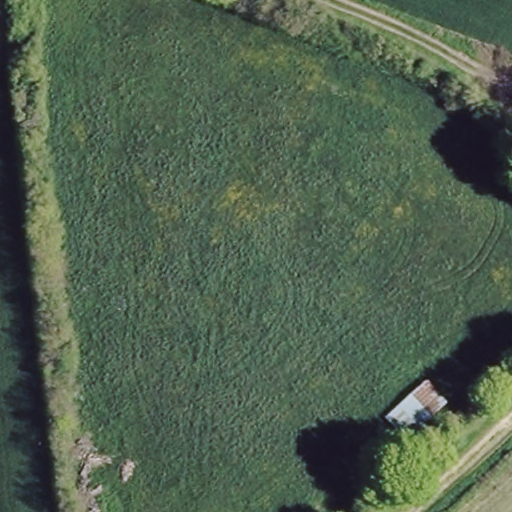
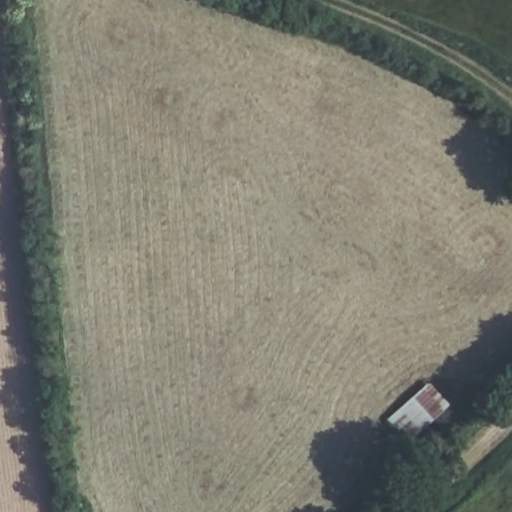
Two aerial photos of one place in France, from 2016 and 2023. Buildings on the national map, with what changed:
unchanged [(427,380),(445,405),(402,437),(381,418),(427,380)]

